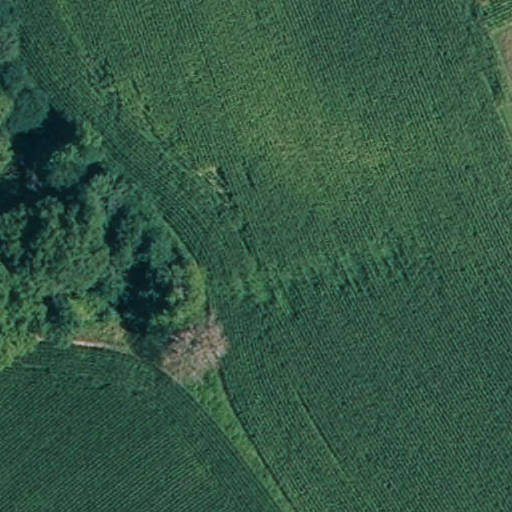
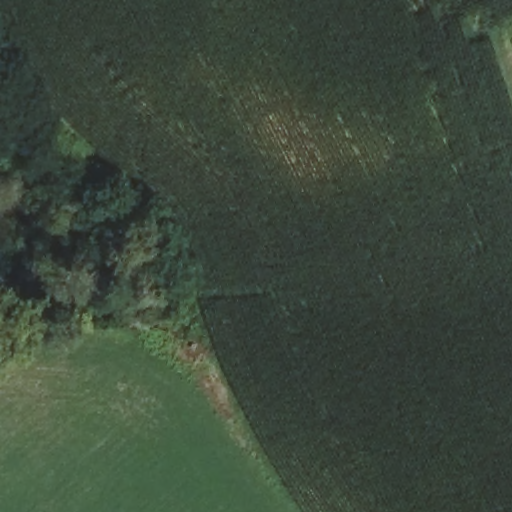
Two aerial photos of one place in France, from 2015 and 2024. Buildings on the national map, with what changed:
[]

